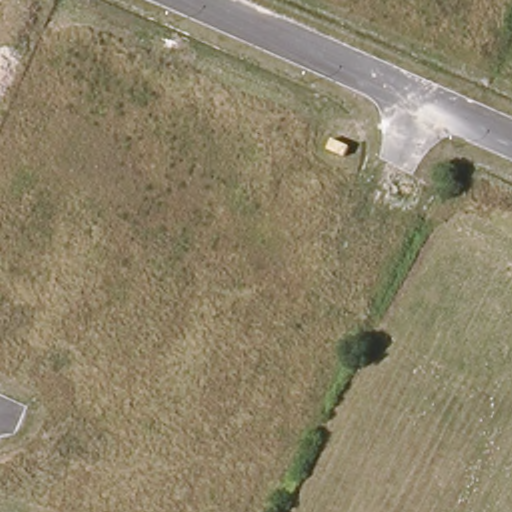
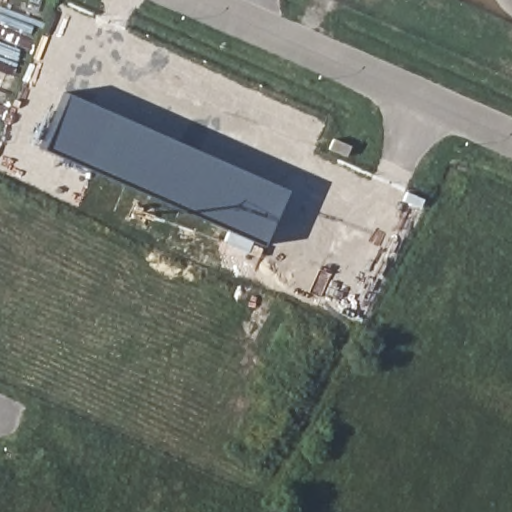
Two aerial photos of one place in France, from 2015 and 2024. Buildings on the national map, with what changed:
new [(260,244),(39,149),(63,92),(284,190),(260,244)]

